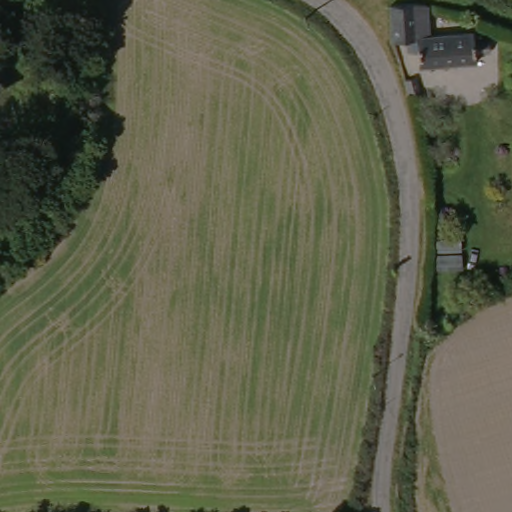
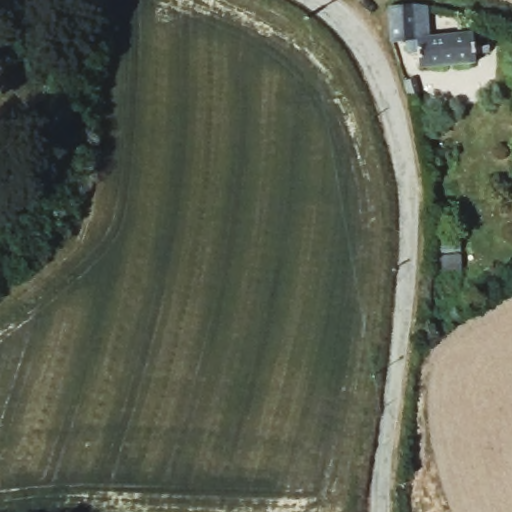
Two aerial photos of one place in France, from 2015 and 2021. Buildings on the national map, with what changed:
unchanged [(421,31),(408,31),(407,36),(383,30),(388,0),(413,0),(427,3),(421,31)]
unchanged [(421,46),(406,43),(407,36),(408,31),(421,31),(476,32),(474,59),(419,58),(421,46)]
unchanged [(436,275),(436,241),(460,240),(459,275),(436,275)]

